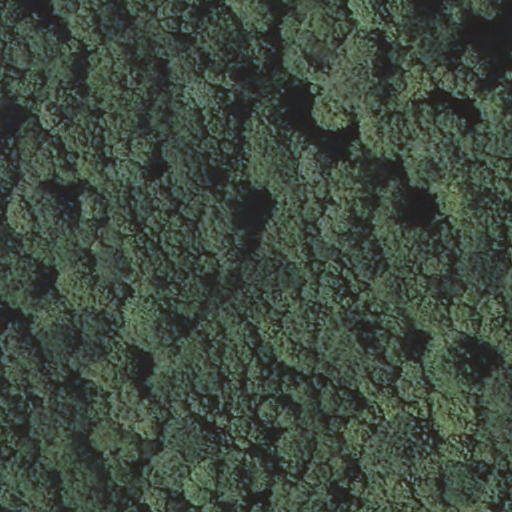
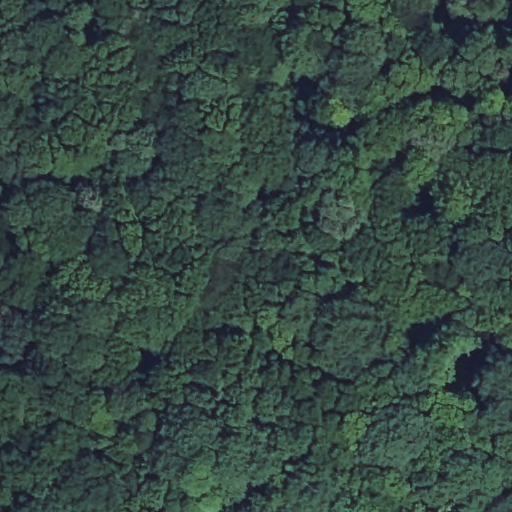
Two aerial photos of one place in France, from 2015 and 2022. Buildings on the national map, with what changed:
unchanged [(422,55),(463,0),(496,0),(455,55),(422,55)]

